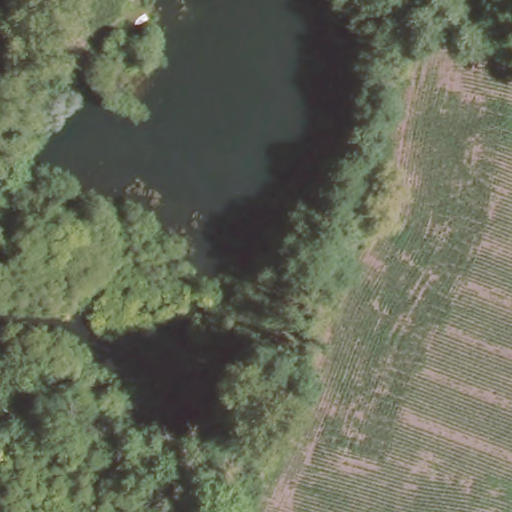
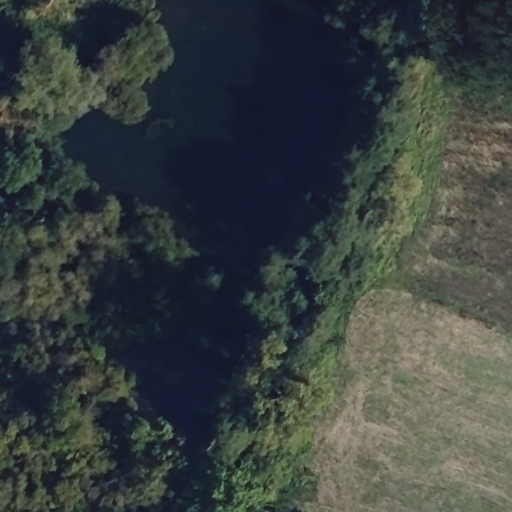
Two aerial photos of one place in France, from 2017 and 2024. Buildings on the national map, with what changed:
[]

